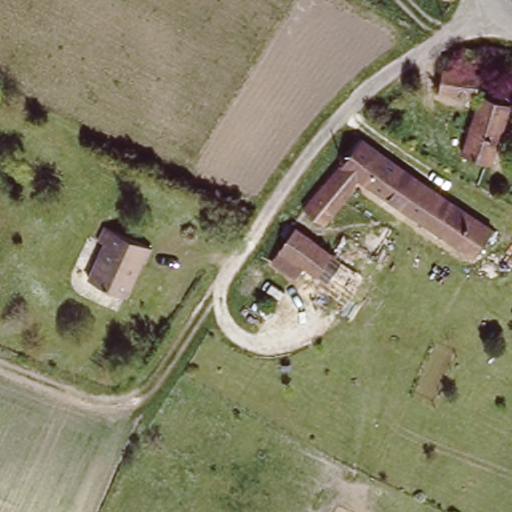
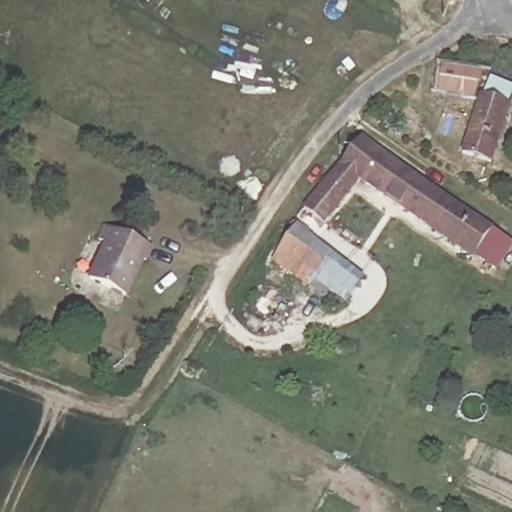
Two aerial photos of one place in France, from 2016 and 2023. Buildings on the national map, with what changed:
unchanged [(499,124),(499,127),(510,134),(512,135),(512,141),(508,147),(510,156),(510,157),(505,178),(467,164),(470,157),(462,154),(475,100),(430,88),(435,66),(483,63),(512,71),(512,79),(499,124)]
unchanged [(495,231),(476,259),(355,179),(324,226),(301,211),(349,149),(357,140),(495,231)]
unchanged [(277,250),(292,226),(327,249),(312,273),(277,250)]
unchanged [(155,248),(148,262),(145,260),(129,297),(92,280),(109,244),(102,240),(108,227),(155,248)]

